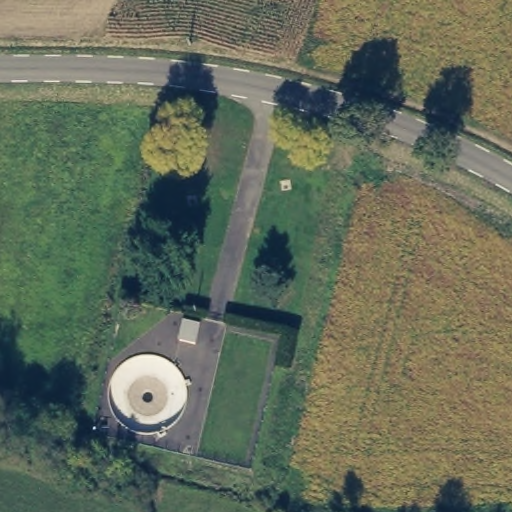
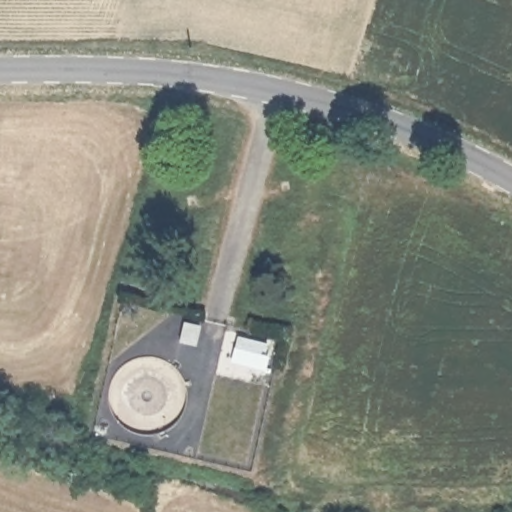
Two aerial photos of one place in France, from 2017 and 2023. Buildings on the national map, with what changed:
unchanged [(199,344),(182,340),(186,320),(203,325),(199,344)]

